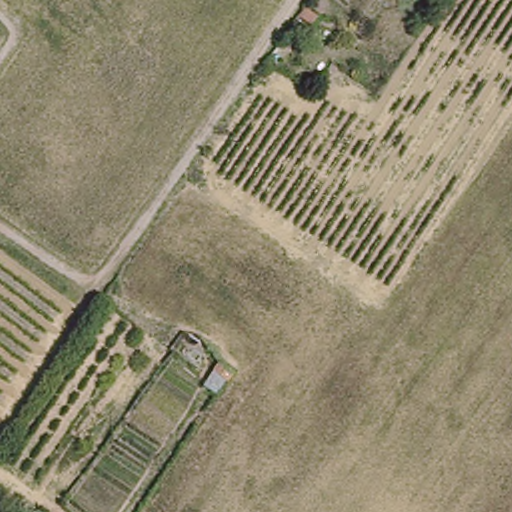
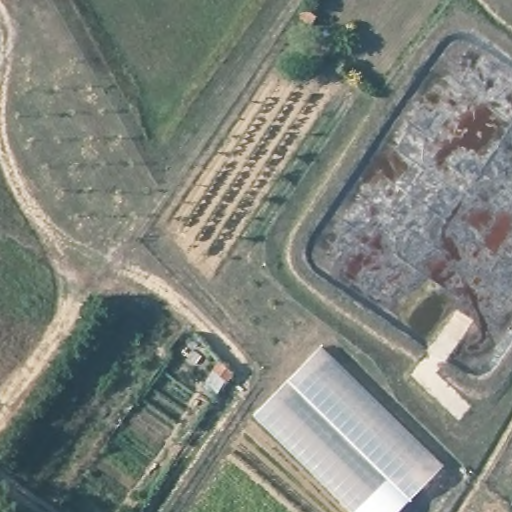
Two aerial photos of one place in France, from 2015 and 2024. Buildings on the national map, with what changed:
new [(398,512),(352,512),(253,416),(321,346),(444,466),(398,512)]
unchanged [(210,373),(219,363),(235,376),(227,386),(210,373)]

